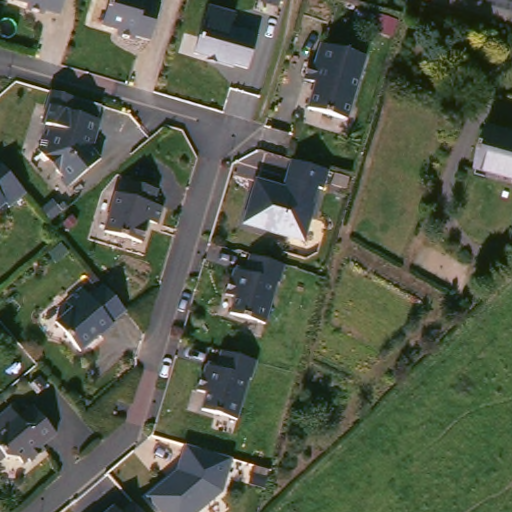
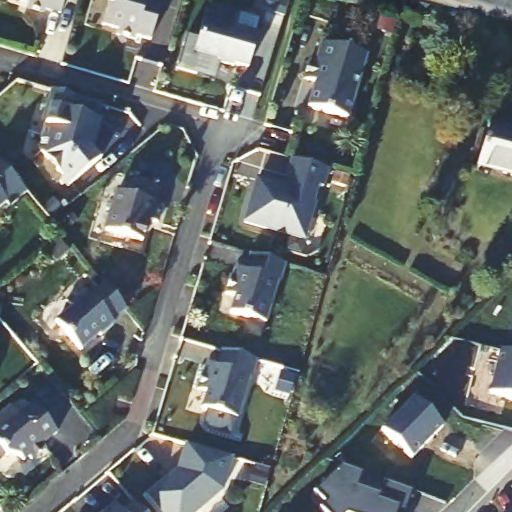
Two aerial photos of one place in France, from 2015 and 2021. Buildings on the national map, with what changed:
unchanged [(32,3),(33,0),(68,0),(66,9),(51,5),(50,8),(32,3)]
unchanged [(112,20),(118,0),(168,0),(170,0),(159,35),(145,31),(144,35),(126,29),(127,25),(112,20)]
unchanged [(219,14),(223,0),(228,0),(249,6),(245,21),(272,30),(262,62),(249,59),(248,60),(232,56),(232,54),(210,47),(219,14)]
unchanged [(376,55),(357,118),(318,106),(326,80),(315,77),(320,59),(326,61),(332,42),(376,55)]
unchanged [(111,159),(77,187),(74,182),(77,180),(50,149),(66,91),(85,97),(97,100),(111,105),(107,119),(99,145),(111,159)]
unchanged [(498,120),(512,123),(512,171),(486,165),(498,120)]
unchanged [(37,188),(21,202),(17,199),(3,210),(0,210),(0,167),(11,157),(37,188)]
unchanged [(342,169),(337,187),(331,185),(326,201),(328,202),(318,237),(261,220),(272,179),(298,186),(307,159),(342,169)]
unchanged [(140,180),(169,189),(164,203),(172,205),(168,222),(159,220),(152,241),(116,230),(127,192),(136,195),(140,180)]
unchanged [(296,264),(290,282),(287,281),(276,322),(242,312),(246,295),(237,292),(242,275),(244,275),(246,267),(256,271),(261,254),(296,264)]
unchanged [(137,305),(138,306),(125,318),(126,320),(112,332),(112,330),(94,346),(67,316),(84,302),(78,295),(94,282),(101,291),(115,279),(137,305)]
unchanged [(268,360),(263,378),(261,377),(249,418),(214,408),(219,391),(210,389),(215,371),(216,371),(218,364),(229,367),(234,350),(268,360)]
new [(512,355),(512,401),(490,395),(501,352),(512,355)]
unchanged [(4,380),(0,383),(0,376),(4,380)]
new [(442,428),(411,458),(384,431),(414,399),(442,428)]
unchanged [(23,408),(31,417),(45,405),(69,433),(55,445),(57,448),(44,460),(42,457),(36,462),(32,458),(20,457),(0,435),(0,428),(23,408)]
unchanged [(194,512),(168,512),(151,491),(181,465),(188,439),(233,452),(223,487),(194,512)]
new [(407,510),(400,507),(398,512),(327,512),(316,501),(322,496),(343,464),(413,491),(407,510)]
unchanged [(106,512),(117,502),(123,510),(137,498),(149,512),(106,512)]

